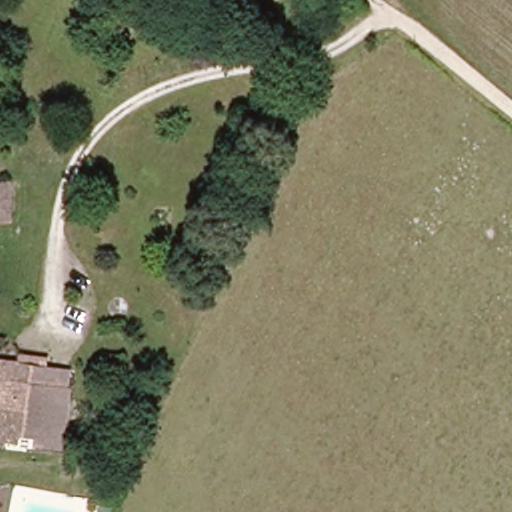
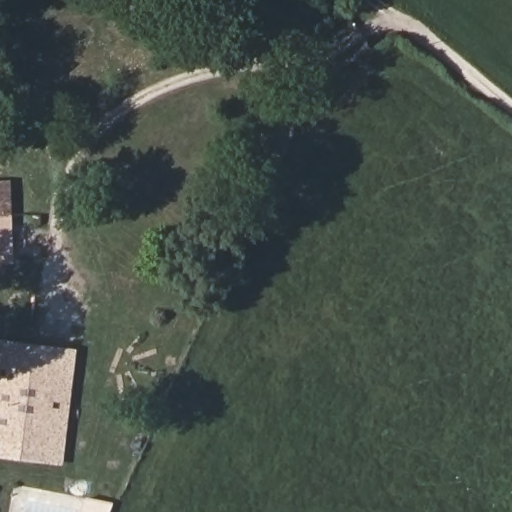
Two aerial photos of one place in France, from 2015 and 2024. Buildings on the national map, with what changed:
unchanged [(11,185),(9,224),(0,223),(0,185),(11,185)]
unchanged [(61,455),(38,451),(39,443),(17,439),(16,445),(7,443),(6,450),(0,449),(0,361),(19,365),(20,355),(49,360),(48,369),(68,372),(64,395),(71,397),(61,455)]

